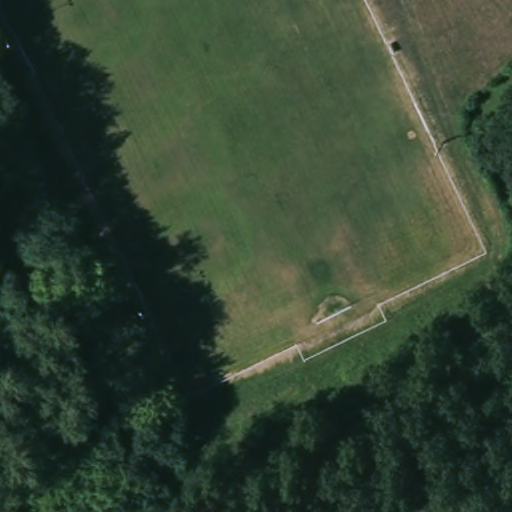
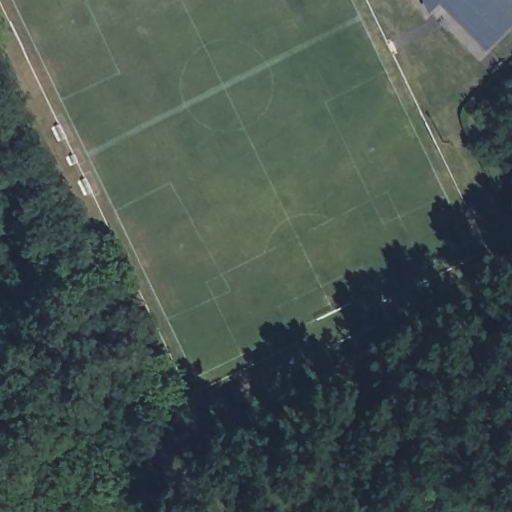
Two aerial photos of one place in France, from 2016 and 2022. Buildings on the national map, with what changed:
new [(420,0),(512,0),(512,22),(483,49),(436,3),(425,12),(420,0)]

